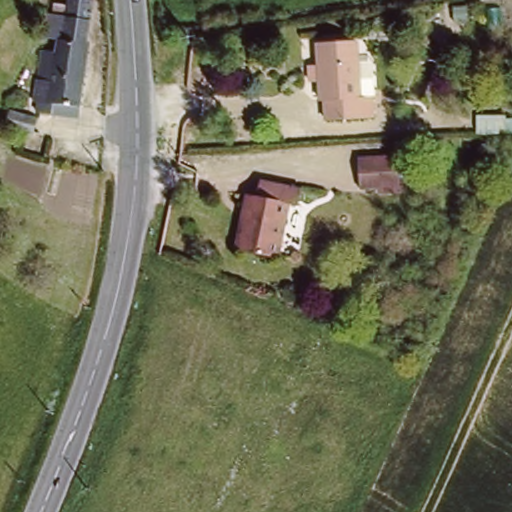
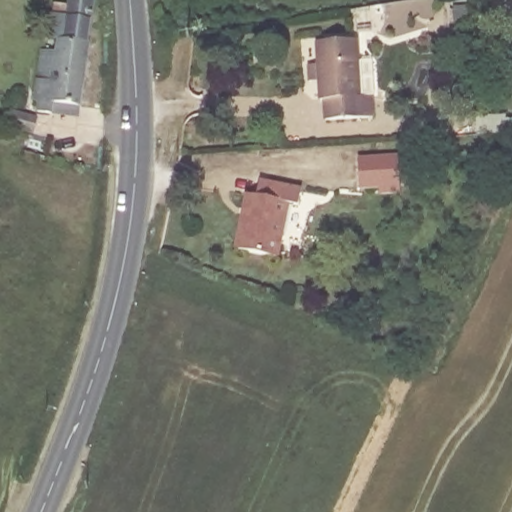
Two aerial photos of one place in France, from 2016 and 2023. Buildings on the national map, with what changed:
unchanged [(94,21),(85,96),(39,90),(40,77),(37,76),(39,61),(45,12),(55,14),(57,0),(94,0),(92,20),(94,21)]
unchanged [(359,40),(360,98),(374,97),(375,116),(327,118),(327,100),(319,100),(317,42),(359,40)]
unchanged [(397,190),(381,190),(381,184),(357,185),(357,155),(402,153),(402,176),(403,182),(403,189),(397,190)]
unchanged [(302,187),(300,202),(290,200),(280,254),(237,245),(247,191),(257,192),(260,180),(302,187)]

